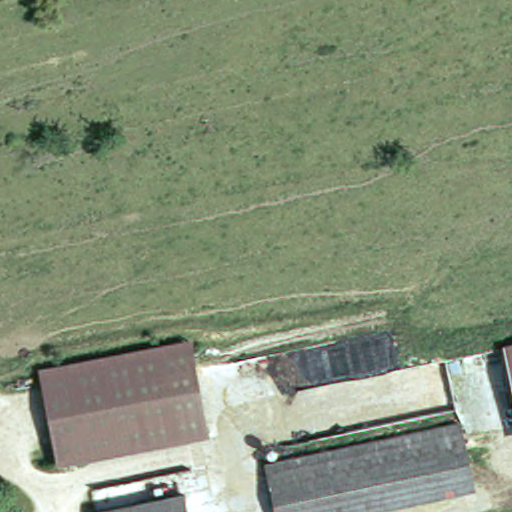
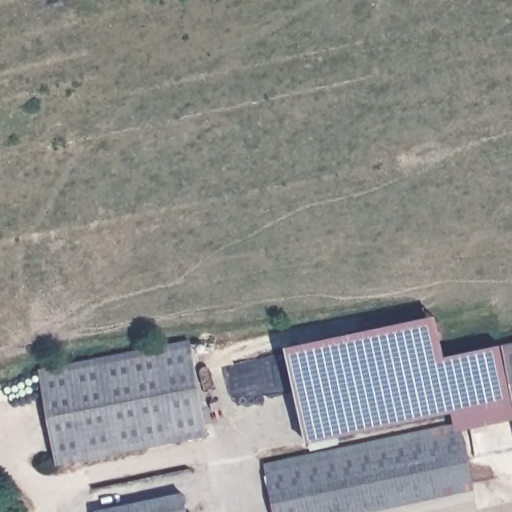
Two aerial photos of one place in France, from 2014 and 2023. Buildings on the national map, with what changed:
new [(464,419),(453,421),(451,413),(306,444),(287,348),(437,315),(447,358),(507,350),(512,371),(512,423),(467,434),(464,419)]
unchanged [(209,436),(57,463),(42,372),(189,344),(209,436)]
unchanged [(507,350),(512,349),(512,371),(507,350)]
unchanged [(361,512),(276,512),(266,463),(464,419),(477,487),(361,512)]
unchanged [(108,512),(186,494),(190,512),(108,512)]

